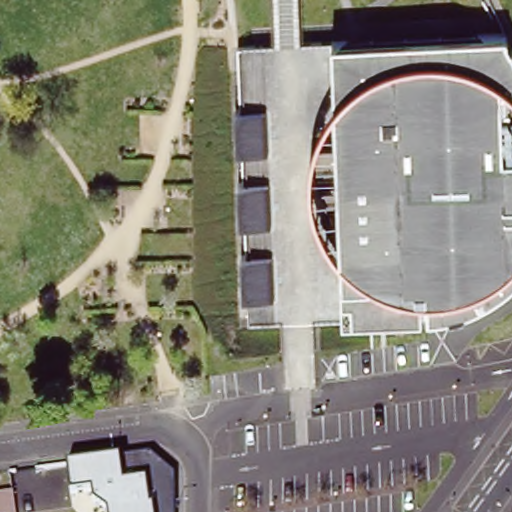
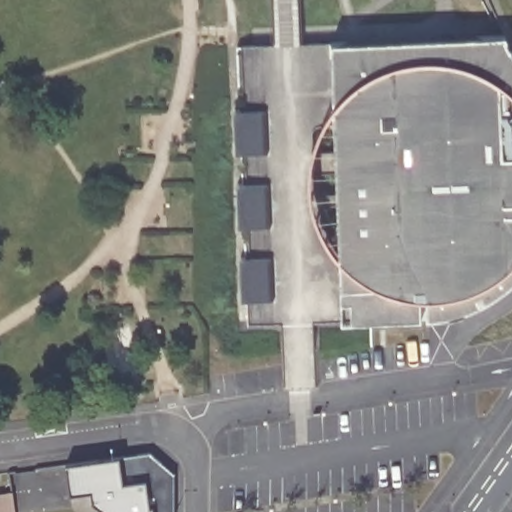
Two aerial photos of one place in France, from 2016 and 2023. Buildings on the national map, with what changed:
unchanged [(338,262),(336,258),(328,107),(333,101),(329,44),(507,36),(512,51),(512,287),(482,306),(449,318),(424,320),(339,326),(338,262)]
unchanged [(266,109),(268,150),(238,151),(235,108),(266,109)]
unchanged [(270,183),(271,227),(241,226),(239,184),(270,183)]
unchanged [(273,256),(274,299),(241,299),(239,258),(273,256)]
unchanged [(108,512),(66,512),(61,477),(103,472),(108,512)]
unchanged [(16,512),(0,512),(0,495),(13,493),(16,512)]

